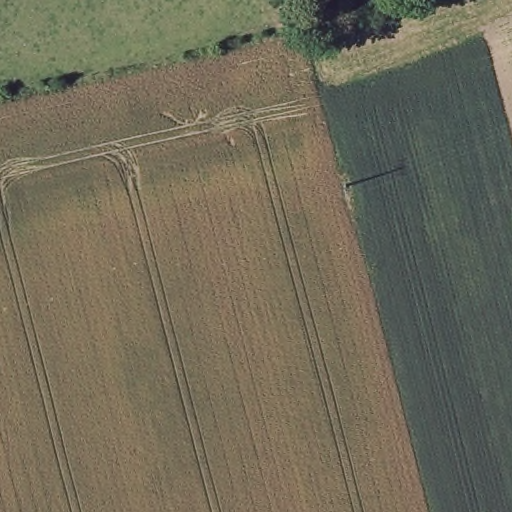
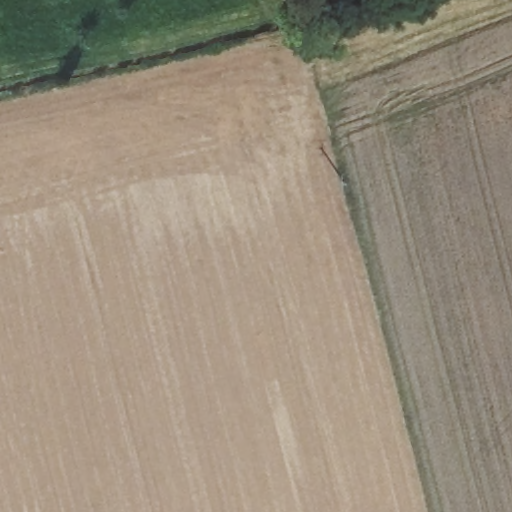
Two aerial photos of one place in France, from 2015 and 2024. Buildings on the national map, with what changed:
[]

